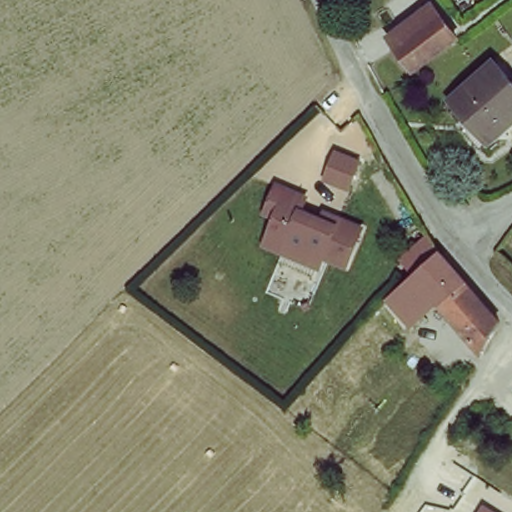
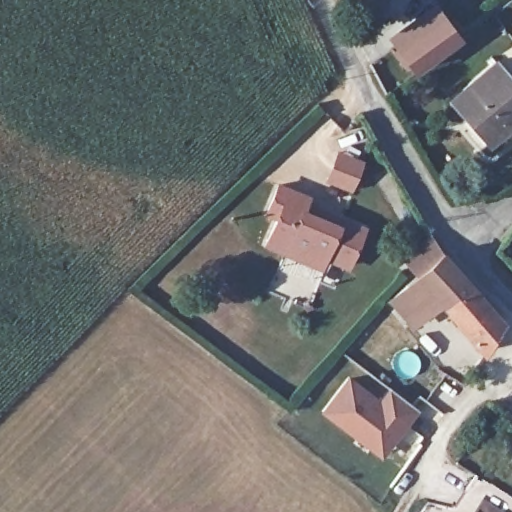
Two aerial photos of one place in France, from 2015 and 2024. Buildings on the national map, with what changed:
unchanged [(414,67),(395,41),(437,9),(457,35),(414,67)]
unchanged [(455,102),(497,65),(512,81),(512,129),(494,145),(455,102)]
unchanged [(344,266),(323,257),(319,267),(284,252),(266,245),(269,237),(277,217),(267,212),(278,186),(308,199),(303,212),(323,220),(326,212),(340,217),(362,227),(344,266)]
unchanged [(483,300),(508,328),(486,355),(442,306),(408,333),(388,312),(422,281),(410,268),(437,242),(444,255),(447,258),(458,272),(483,300)]
new [(349,375),(379,397),(388,387),(418,410),(382,457),(320,412),(349,375)]
unchanged [(500,512),(482,512),(487,503),(500,512)]

